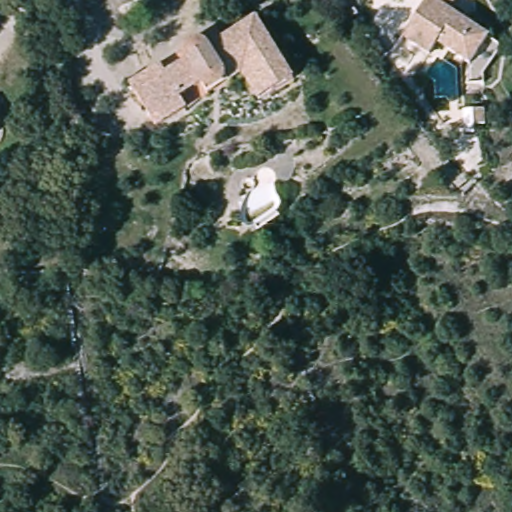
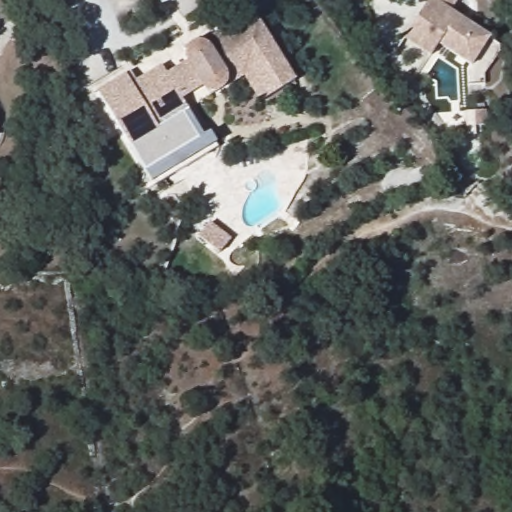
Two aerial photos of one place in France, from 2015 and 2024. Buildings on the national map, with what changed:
unchanged [(407,29),(423,5),(418,1),(419,0),(460,0),(455,9),(494,35),(468,72),(407,29)]
unchanged [(297,81),(259,103),(244,78),(209,100),(203,88),(183,98),(190,110),(156,129),(130,84),(162,66),(166,74),(187,63),(184,55),(185,47),(194,41),(201,42),(219,31),(223,39),(257,19),(297,81)]
new [(204,135),(210,133),(216,143),(151,182),(96,90),(130,71),(137,81),(130,84),(156,129),(164,124),(190,110),(204,135)]

